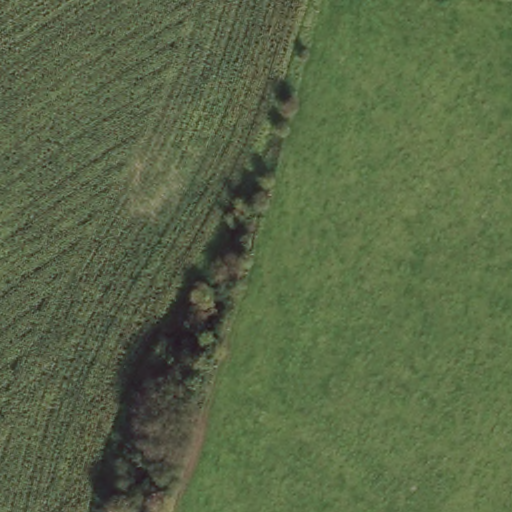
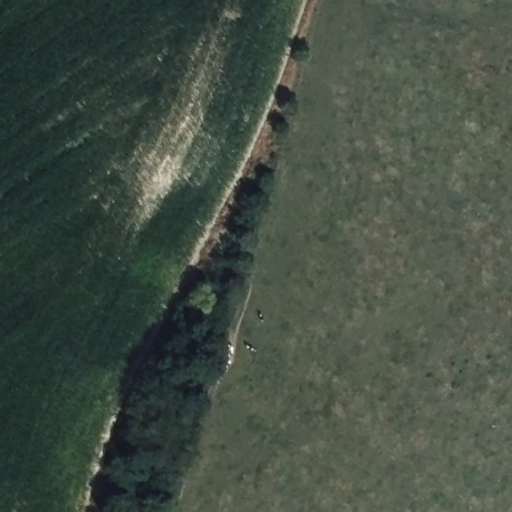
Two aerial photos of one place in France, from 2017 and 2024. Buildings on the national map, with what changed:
unchanged [(369,0),(383,0),(370,4),(369,0)]

